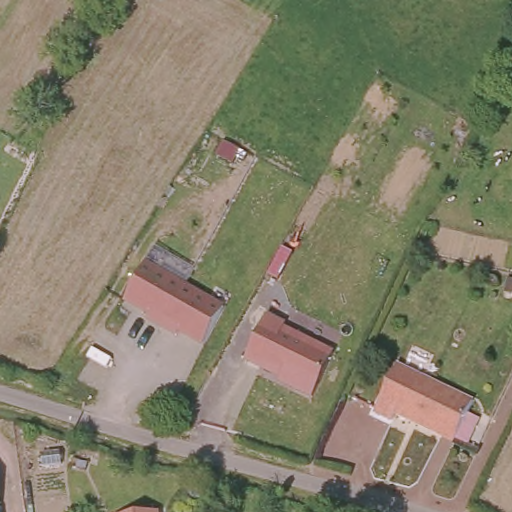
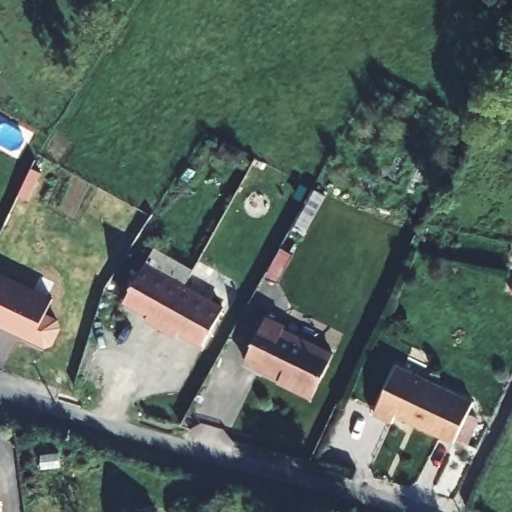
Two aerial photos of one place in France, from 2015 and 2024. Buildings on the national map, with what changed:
unchanged [(147,262),(226,307),(202,347),(122,303),(147,262)]
new [(54,301),(46,316),(57,322),(60,328),(52,344),(46,346),(0,324),(0,275),(54,301)]
unchanged [(265,317),(334,352),(312,398),(242,364),(265,317)]
unchanged [(454,438),(397,412),(393,421),(374,411),(399,364),(474,401),(454,438)]
unchanged [(1,512),(0,512),(0,505),(1,512)]
unchanged [(115,509),(159,508),(159,512),(115,512),(115,509)]

